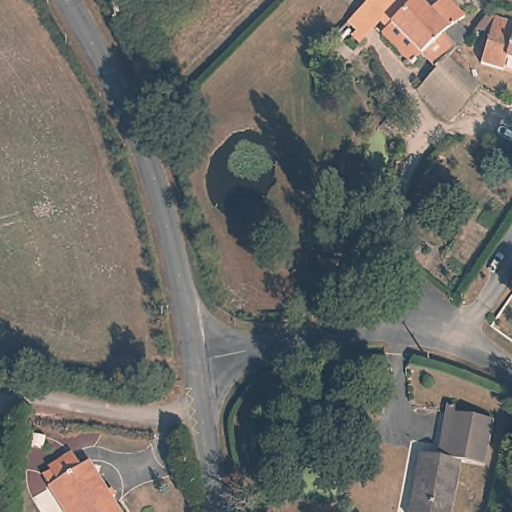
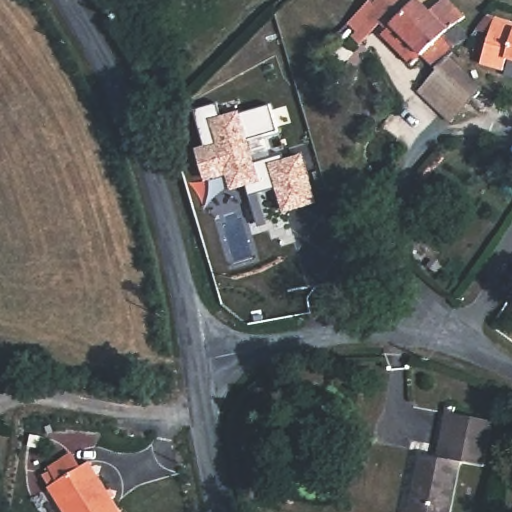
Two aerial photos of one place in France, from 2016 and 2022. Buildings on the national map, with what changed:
unchanged [(374,14),(364,24),(353,11),(363,1),(364,0),(414,0),(416,2),(387,30),(374,14)]
unchanged [(363,0),(364,0),(363,1),(363,0)]
unchanged [(425,77),(387,30),(416,2),(418,0),(449,0),(463,16),(439,55),(425,77)]
unchanged [(507,57),(504,68),(486,63),(501,11),(512,15),(512,59),(507,57)]
unchanged [(474,88),(443,133),(430,120),(411,101),(425,77),(439,55),(474,88)]
new [(195,151),(204,149),(193,111),(218,104),(220,116),(240,111),(241,114),(270,105),(278,131),(250,139),(256,161),(279,155),(282,160),(305,154),(318,206),(284,214),(277,189),(261,194),(271,226),(259,229),(247,189),(232,193),(228,177),(206,183),(195,151)]
unchanged [(481,468),(460,466),(453,512),(412,512),(418,462),(439,464),(447,415),(489,417),(481,468)]
unchanged [(90,460),(121,512),(65,512),(58,499),(49,484),(64,475),(88,461),(90,460)]

